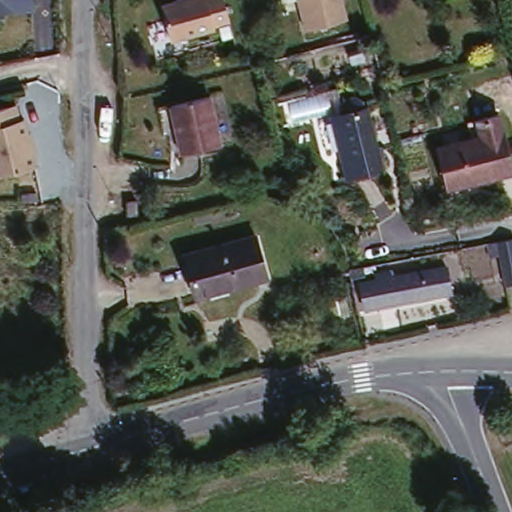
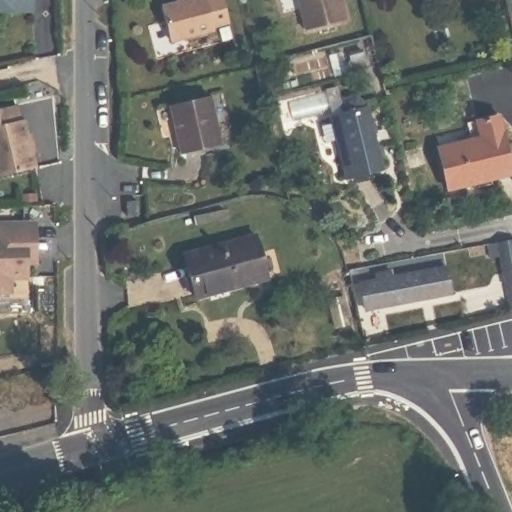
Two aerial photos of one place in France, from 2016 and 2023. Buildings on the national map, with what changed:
unchanged [(11,14),(3,14),(0,14),(0,0),(32,0),(33,14),(11,14)]
unchanged [(221,0),(228,24),(212,28),(213,30),(168,41),(159,6),(186,0),(221,0)]
unchanged [(309,30),(304,11),(287,15),(283,0),(344,0),(349,20),(309,30)]
unchanged [(344,179),(328,114),(345,111),(343,106),(348,99),(357,96),(364,100),(366,108),(369,108),(385,169),(344,179)]
unchanged [(212,99),(224,148),(184,156),(172,108),(212,99)]
unchanged [(26,115),(31,113),(41,144),(36,144),(40,170),(0,178),(0,107),(23,101),(26,115)]
unchanged [(508,178),(446,193),(435,149),(475,139),(471,124),(494,119),(508,178)]
unchanged [(131,204),(131,218),(121,218),(121,204),(131,204)]
new [(29,275),(13,277),(12,292),(0,292),(0,222),(26,222),(29,275)]
unchanged [(256,237),(269,278),(199,298),(189,263),(187,257),(256,237)]
unchanged [(511,242),(512,247),(512,284),(501,286),(494,244),(511,242)]
unchanged [(389,276),(390,284),(446,274),(451,297),(394,308),(363,314),(357,281),(389,276)]

